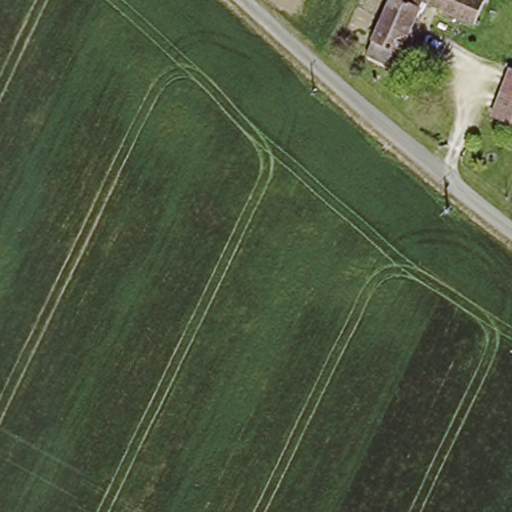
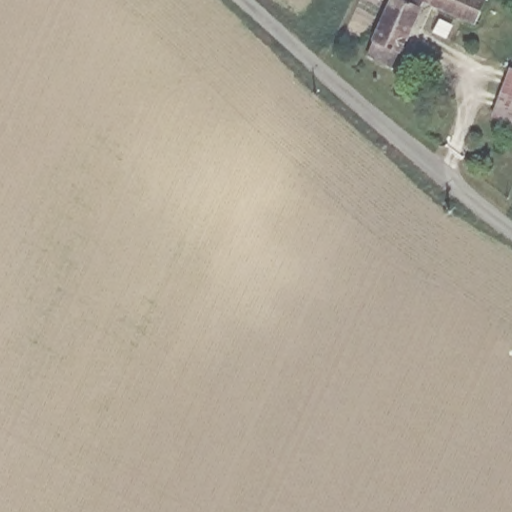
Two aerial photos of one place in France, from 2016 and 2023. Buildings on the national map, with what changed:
unchanged [(477,0),(490,6),(480,31),(428,7),(405,59),(404,58),(392,82),(372,70),(402,0),(477,0)]
unchanged [(512,59),(512,141),(480,129),(507,57),(512,59)]

